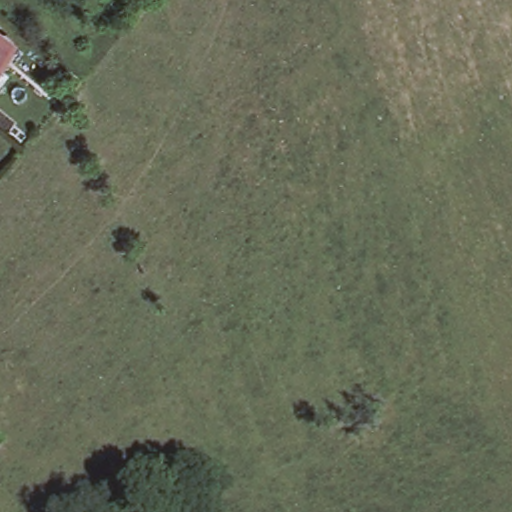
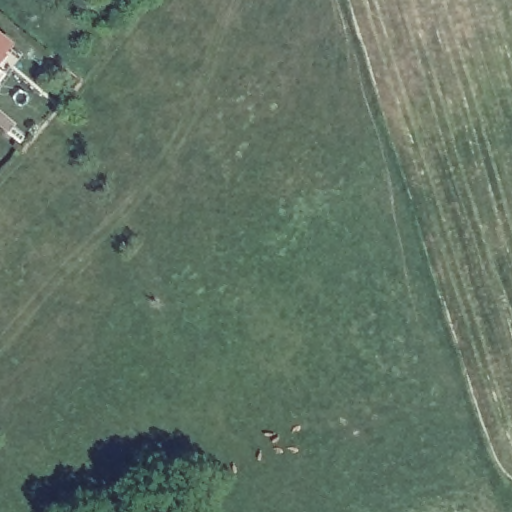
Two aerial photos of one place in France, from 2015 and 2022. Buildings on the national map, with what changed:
unchanged [(2,45),(0,48),(0,43),(2,45)]

